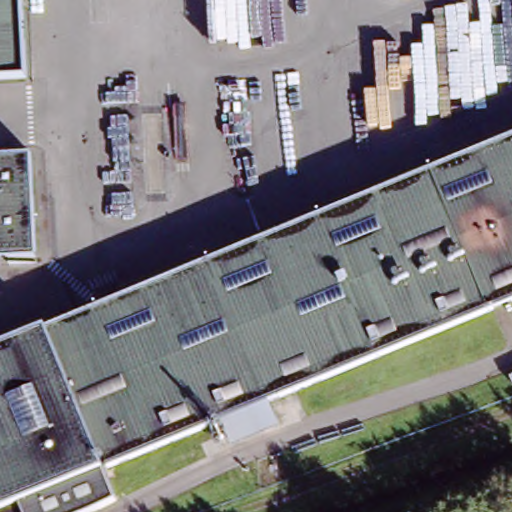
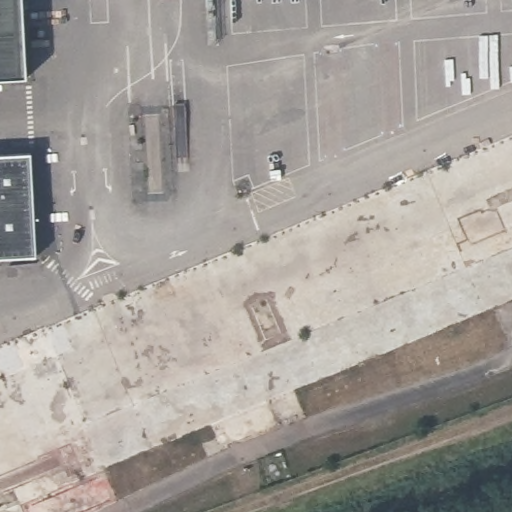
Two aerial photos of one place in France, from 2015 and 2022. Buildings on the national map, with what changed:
unchanged [(0,76),(0,0),(19,0),(25,75),(0,76)]
demolished [(47,322),(512,133),(512,299),(115,461),(101,466),(0,508),(0,347),(42,329),(47,322)]
unchanged [(36,259),(0,259),(0,155),(37,155),(36,259)]

